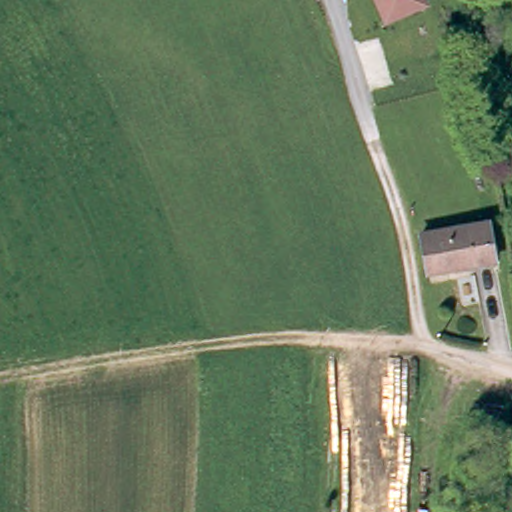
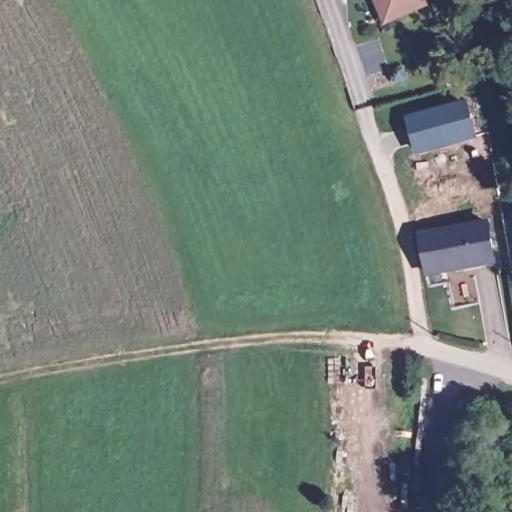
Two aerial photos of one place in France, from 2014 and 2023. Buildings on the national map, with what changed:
unchanged [(387,20),(380,0),(426,0),(428,5),(387,20)]
new [(406,114),(467,98),(479,138),(417,153),(406,114)]
unchanged [(485,217),(490,257),(421,266),(415,225),(485,217)]

